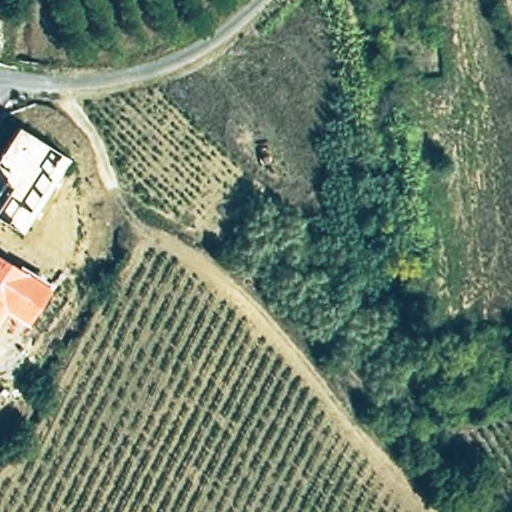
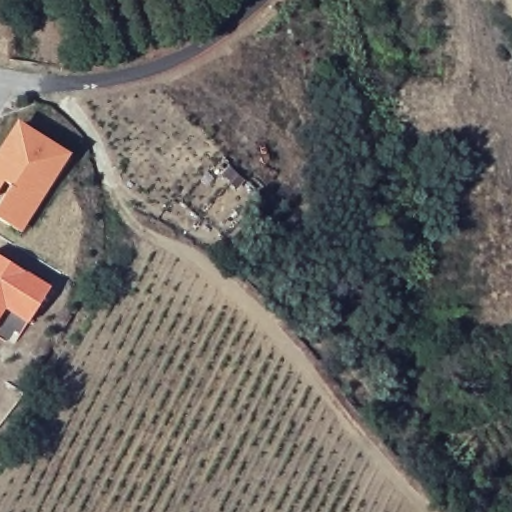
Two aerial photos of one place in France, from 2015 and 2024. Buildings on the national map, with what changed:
new [(0,209),(14,185),(7,181),(0,193),(0,160),(20,126),(63,151),(67,154),(54,176),(33,211),(22,230),(12,224),(0,217),(0,209)]
unchanged [(29,321),(5,307),(0,315),(0,256),(50,287),(29,321)]

